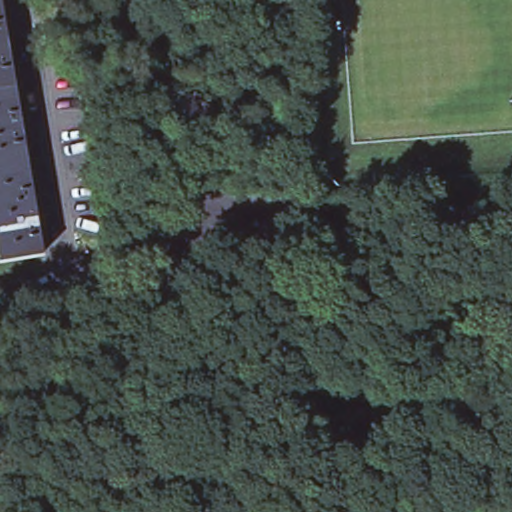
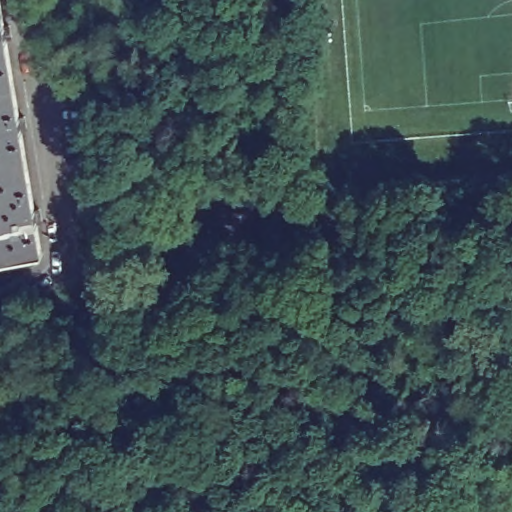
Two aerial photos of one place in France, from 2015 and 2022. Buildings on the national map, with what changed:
unchanged [(4,38),(17,117),(20,129),(34,210),(36,222),(41,252),(42,253),(24,257),(0,261),(0,14),(2,25),(4,38)]

